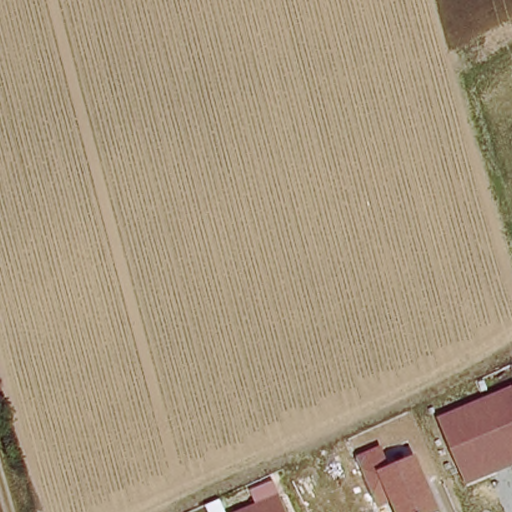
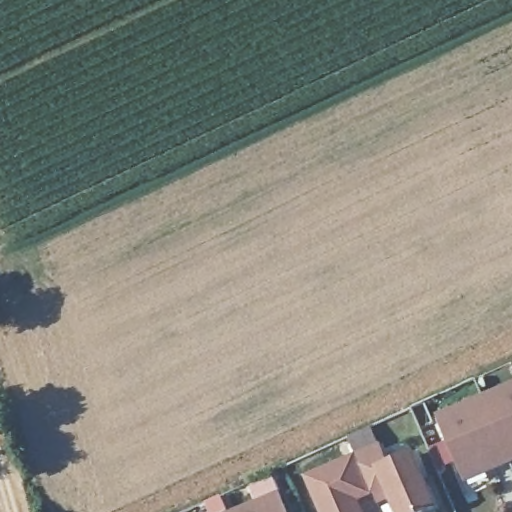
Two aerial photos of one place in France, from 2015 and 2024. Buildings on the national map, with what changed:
unchanged [(466,483),(441,416),(512,386),(512,465),(466,483)]
unchanged [(397,512),(392,501),(377,508),(358,457),(381,447),(389,466),(417,455),(440,511),(437,512),(397,512)]
new [(359,503),(363,512),(320,512),(305,478),(358,457),(373,497),(359,503)]
unchanged [(237,512),(283,494),(289,512),(237,512)]

